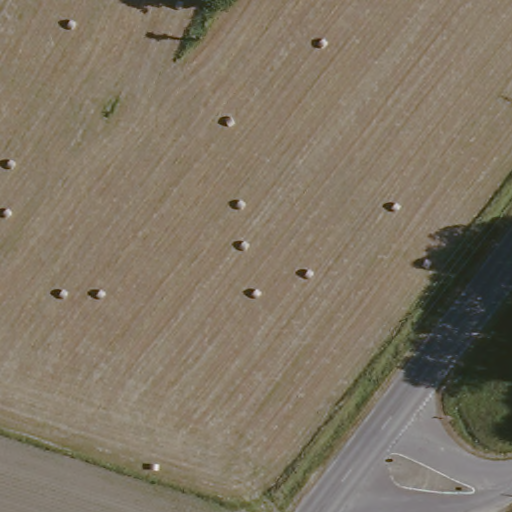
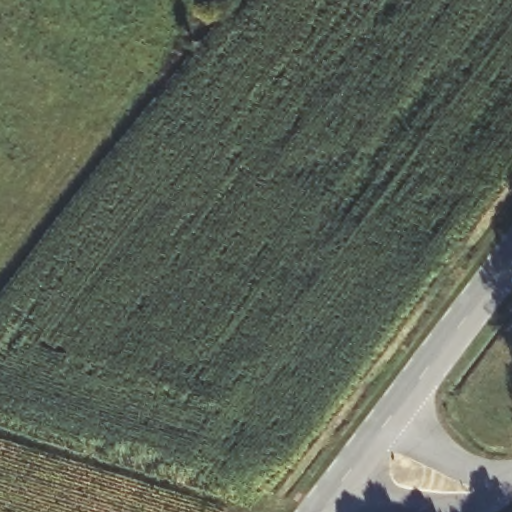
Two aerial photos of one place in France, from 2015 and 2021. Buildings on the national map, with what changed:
[]

